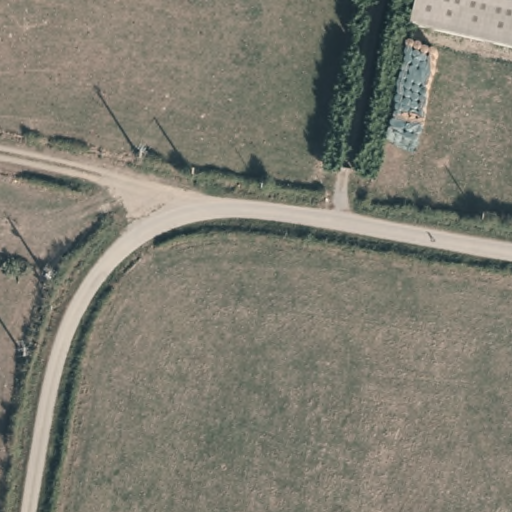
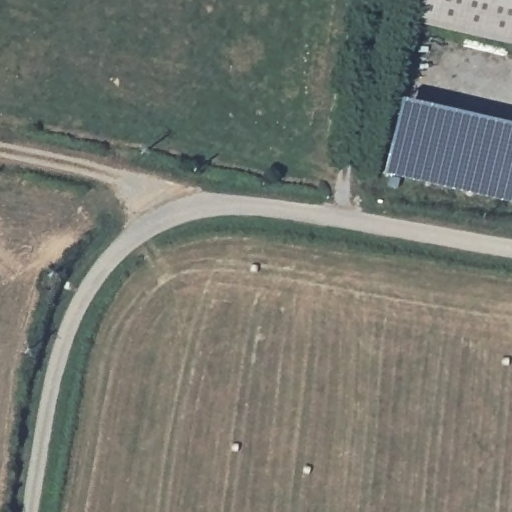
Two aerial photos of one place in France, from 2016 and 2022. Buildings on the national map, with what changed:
unchanged [(426,0),(512,0),(512,40),(422,23),(426,0)]
new [(401,101),(512,126),(512,202),(384,173),(401,101)]

